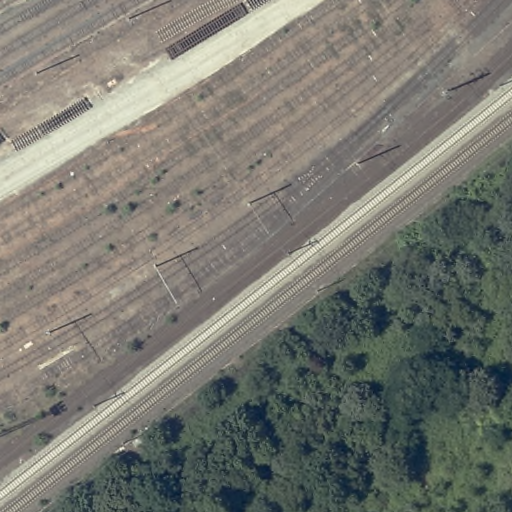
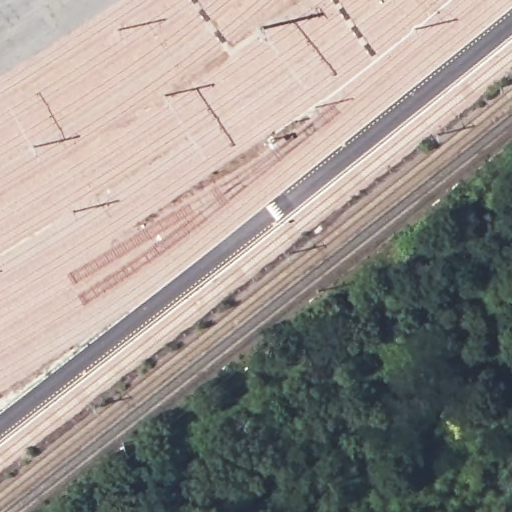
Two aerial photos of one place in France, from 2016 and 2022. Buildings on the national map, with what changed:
unchanged [(478,462),(486,438),(512,447),(512,465),(509,473),(478,462)]

